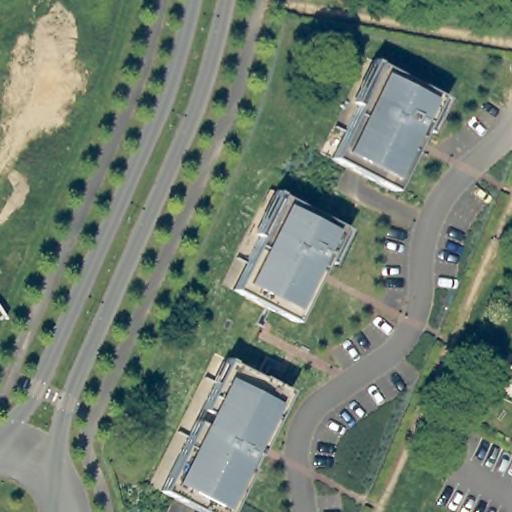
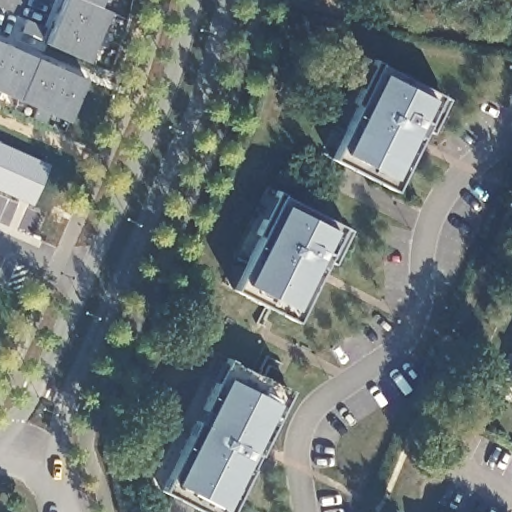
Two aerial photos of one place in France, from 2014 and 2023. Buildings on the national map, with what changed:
new [(91,0),(100,4),(110,8),(89,59),(46,40),(63,0),(91,0)]
new [(91,0),(102,0),(100,4),(91,0)]
new [(26,17),(46,25),(41,39),(21,30),(26,17)]
new [(0,89),(0,40),(87,77),(70,119),(0,89)]
unchanged [(371,180),(350,168),(333,160),(347,134),(342,131),(378,62),(441,95),(420,136),(409,131),(403,142),(413,148),(392,190),(371,180)]
new [(50,165),(32,205),(0,190),(0,143),(50,165)]
unchanged [(236,291),(250,265),(245,262),(280,194),(343,226),(322,268),(311,262),(305,274),(316,280),(295,321),(236,291)]
unchanged [(202,511),(205,505),(184,493),(180,500),(161,490),(160,490),(195,419),(202,422),(207,412),(201,408),(215,381),(220,383),(231,361),(254,372),(258,375),(290,391),(257,455),(255,453),(249,466),(250,467),(228,512),(203,512),(202,511)]
unchanged [(512,371),(512,380),(508,378),(512,371)]

